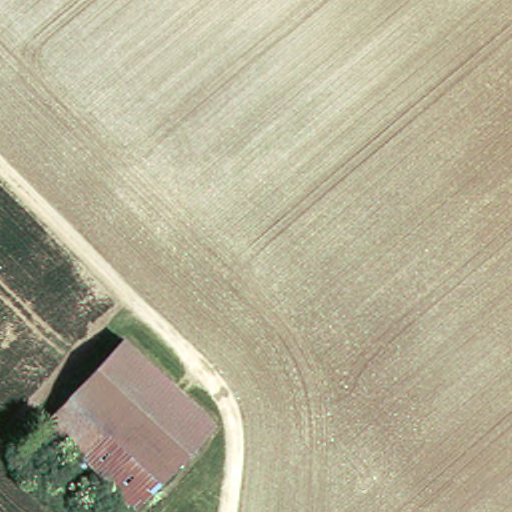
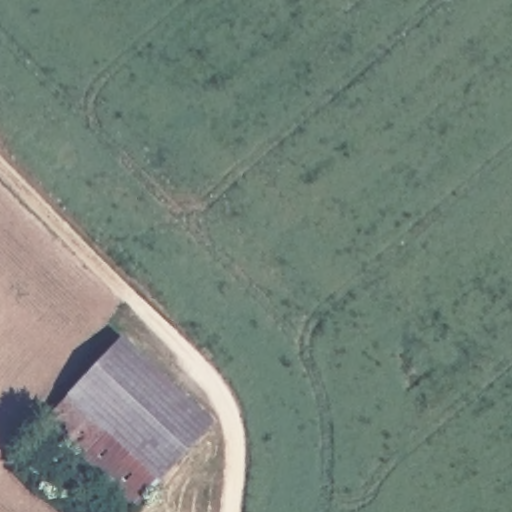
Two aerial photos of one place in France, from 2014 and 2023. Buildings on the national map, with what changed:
unchanged [(141,463),(118,487),(50,424),(126,343),(219,426),(167,485),(141,463)]

